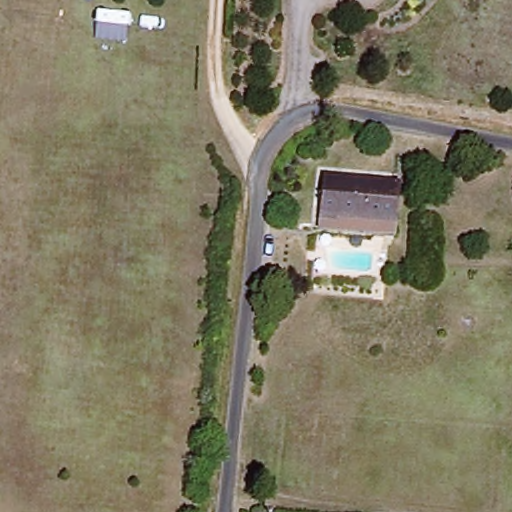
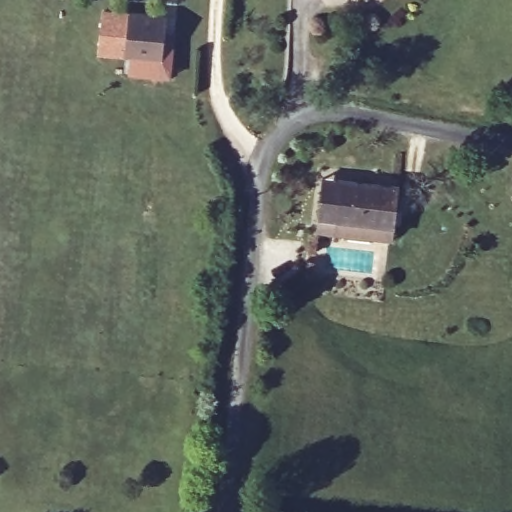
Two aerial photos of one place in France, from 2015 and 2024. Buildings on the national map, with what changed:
new [(165,16),(162,60),(97,56),(102,11),(165,16)]
unchanged [(317,227),(317,220),(322,186),(324,175),(340,177),(402,185),(395,226),(393,239),(317,227)]

